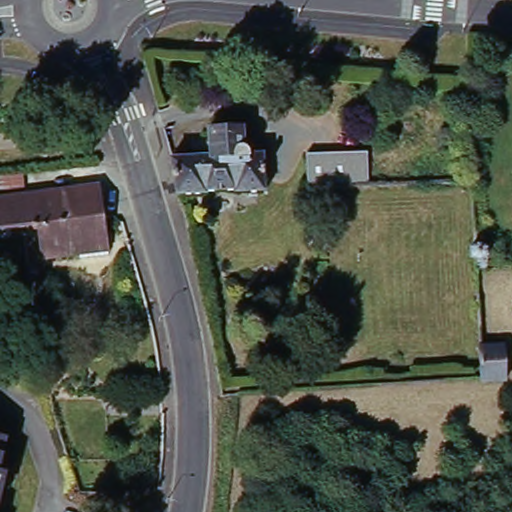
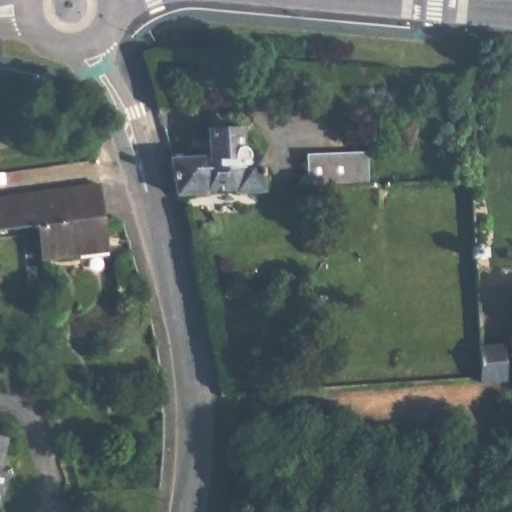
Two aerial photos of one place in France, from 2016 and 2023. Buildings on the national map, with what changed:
unchanged [(171,159),(210,157),(208,131),(243,129),(244,147),(247,152),(247,154),(263,155),(264,190),(235,192),(236,189),(205,190),(205,193),(176,196),(171,159)]
unchanged [(311,151),(370,148),(372,179),(314,181),(311,151)]
unchanged [(112,249),(85,253),(84,249),(51,252),(47,220),(4,224),(0,197),(0,193),(105,180),(112,249)]
unchanged [(471,257),(470,248),(476,244),(488,247),(487,255),(477,260),(471,257)]
unchanged [(485,346),(509,346),(511,379),(486,380),(485,346)]
unchanged [(13,438),(0,494),(0,435),(13,438)]

